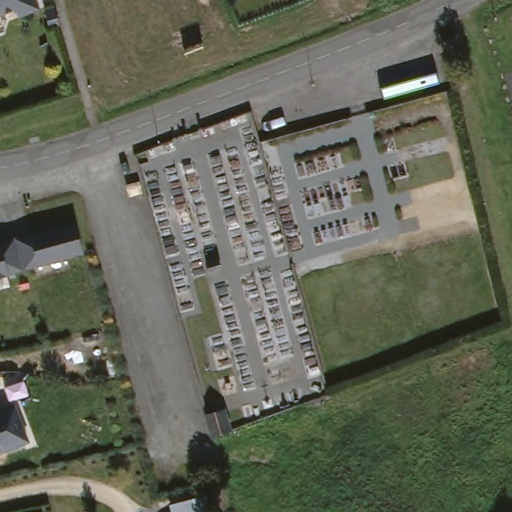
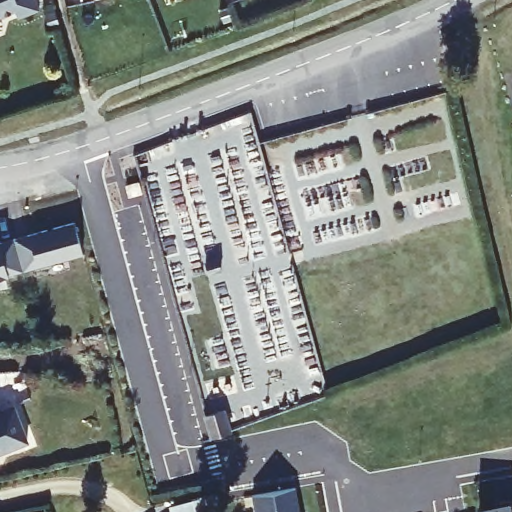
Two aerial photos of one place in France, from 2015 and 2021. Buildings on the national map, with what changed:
unchanged [(12,24),(9,16),(0,20),(0,0),(27,0),(33,16),(12,24)]
unchanged [(142,196),(130,199),(127,188),(140,185),(142,196)]
unchanged [(67,228),(77,260),(24,274),(2,281),(0,281),(0,246),(7,244),(67,228)]
unchanged [(202,413),(221,408),(227,429),(207,434),(202,413)]
unchanged [(0,415),(12,411),(24,446),(0,454),(0,415)]
new [(249,499),(247,489),(253,488),(284,483),(291,482),(295,512),(251,512),(249,499)]
unchanged [(170,508),(194,496),(202,512),(172,512),(170,508)]
new [(496,512),(495,507),(512,504),(512,512),(493,512),(496,512)]
unchanged [(15,510),(34,508),(35,512),(15,512),(15,510)]

